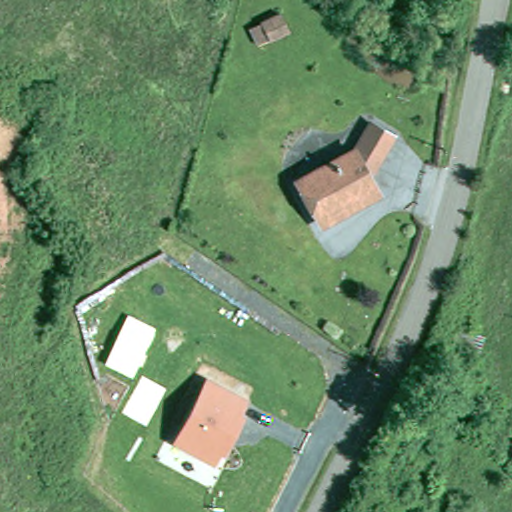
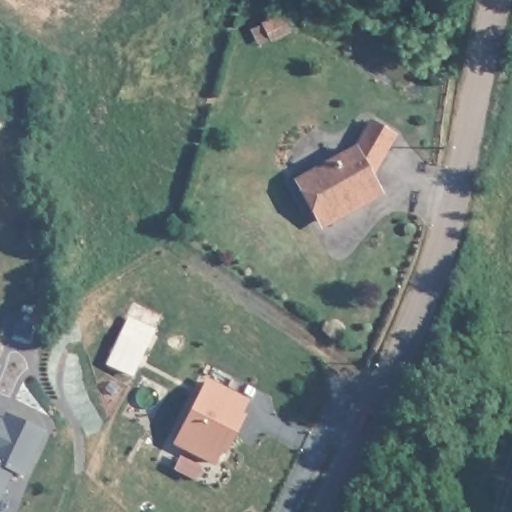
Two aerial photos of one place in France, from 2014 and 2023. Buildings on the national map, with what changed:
unchanged [(324,224),(303,185),(359,154),(374,126),(398,138),(376,180),(383,193),(324,224)]
unchanged [(159,329),(136,378),(103,364),(129,311),(159,329)]
unchanged [(249,401),(217,463),(174,439),(206,376),(249,401)]
new [(24,476),(13,471),(0,499),(0,418),(4,410),(45,432),(24,476)]

